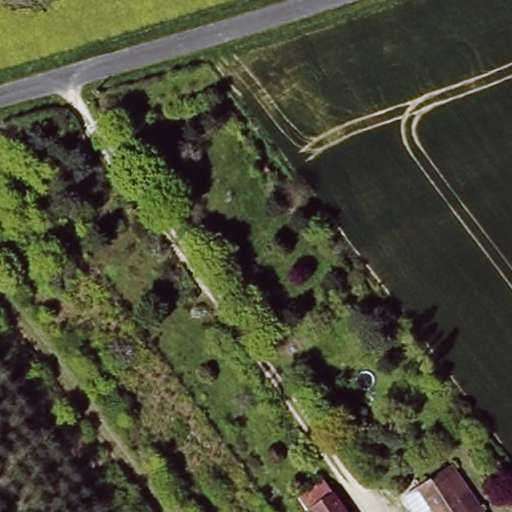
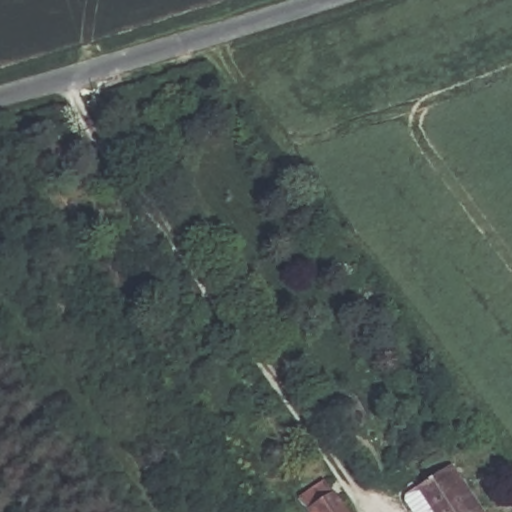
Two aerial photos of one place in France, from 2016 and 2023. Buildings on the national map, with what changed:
unchanged [(435,512),(411,477),(430,465),(436,473),(452,462),(484,512),(435,512)]
unchanged [(309,512),(296,492),(322,474),(345,512),(309,512)]

